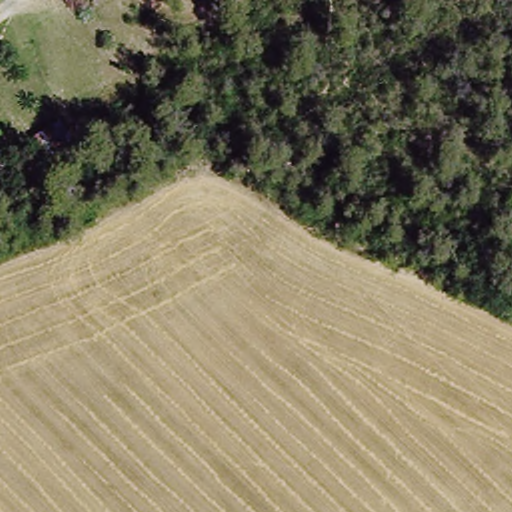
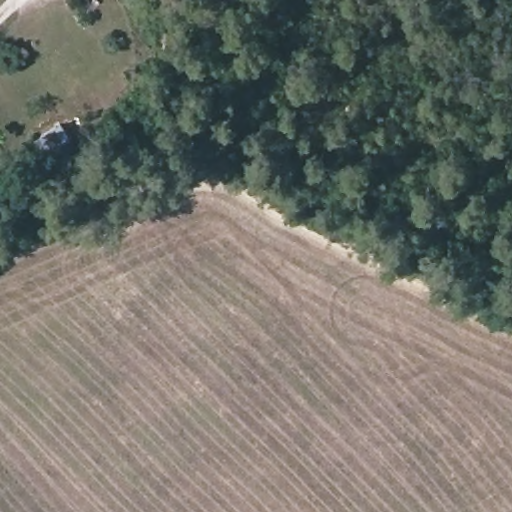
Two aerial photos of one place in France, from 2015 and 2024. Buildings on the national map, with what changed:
unchanged [(71,139),(35,155),(26,135),(58,120),(71,139)]

